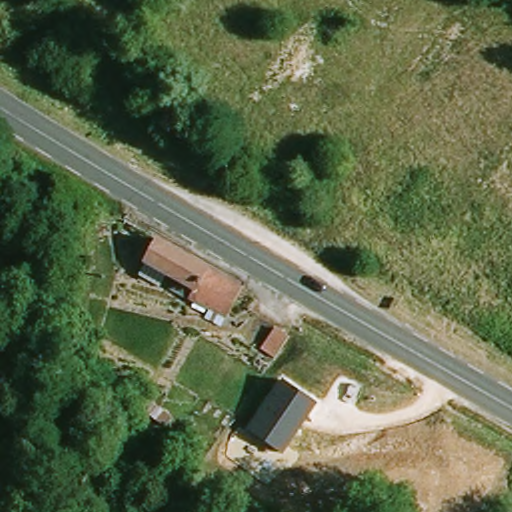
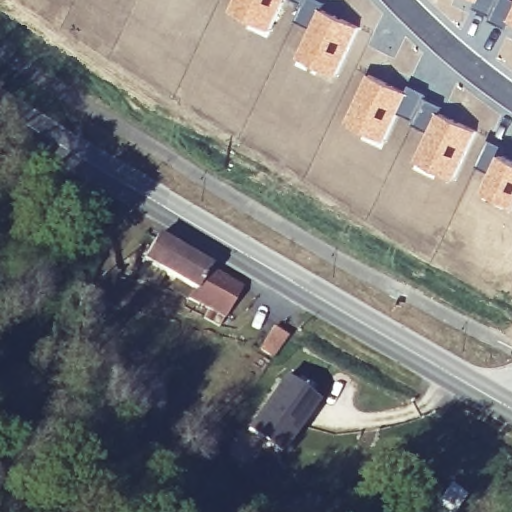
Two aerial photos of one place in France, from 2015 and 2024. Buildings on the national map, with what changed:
new [(233,0),(286,0),(269,33),(227,10),(233,0)]
new [(310,26),(295,18),(302,3),(304,0),(319,0),(322,1),(320,6),(360,25),(336,77),(295,59),(310,26)]
new [(302,3),(296,0),(304,0),(302,3)]
new [(476,3),(470,0),(478,0),(476,3)]
new [(476,3),(478,0),(512,0),(512,10),(506,23),(505,26),(474,7),(476,3)]
new [(512,10),(512,26),(506,23),(512,10)]
new [(367,72),(407,90),(409,91),(400,112),(383,143),(343,122),(367,72)]
new [(409,91),(407,90),(410,83),(427,93),(426,95),(443,104),(440,109),(427,131),(413,123),(415,120),(400,112),(409,91)]
new [(427,131),(440,109),(479,130),(455,181),(413,162),(427,131)]
new [(487,139),(502,146),(500,152),(512,157),(512,205),(482,191),(490,173),(476,166),(487,139)]
unchanged [(137,273),(157,239),(208,268),(207,269),(240,286),(224,315),(189,296),(193,288),(166,273),(159,285),(137,273)]
unchanged [(274,357),(260,348),(275,327),(287,336),(288,336),(274,357)]
unchanged [(317,403),(282,455),(248,432),(282,379),(317,403)]

